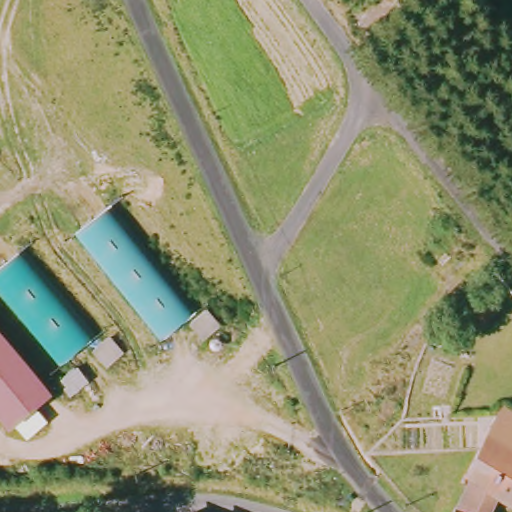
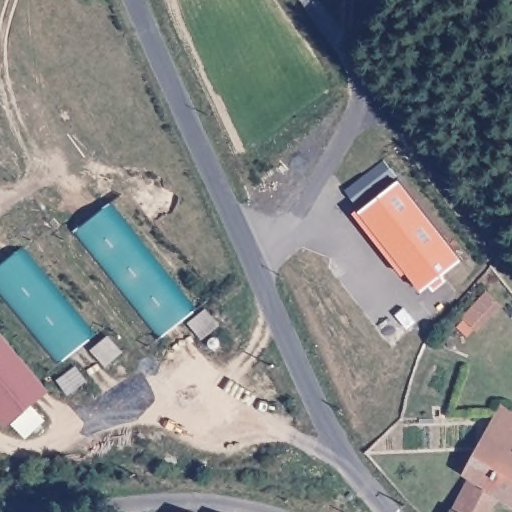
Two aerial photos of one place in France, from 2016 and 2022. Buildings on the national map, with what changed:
new [(400,181),(462,260),(442,276),(446,282),(434,291),(430,285),(423,291),(409,273),(404,276),(354,213),(359,210),(361,212),(400,181)]
unchanged [(115,203),(200,312),(165,341),(78,233),(115,203)]
unchanged [(95,344),(65,371),(0,296),(0,268),(22,251),(95,344)]
unchanged [(211,310),(223,327),(208,340),(196,323),(211,310)]
unchanged [(12,434),(0,420),(0,334),(55,396),(12,434)]
unchanged [(115,337),(128,355),(110,368),(98,351),(115,337)]
unchanged [(507,446),(500,457),(481,448),(497,423),(507,407),(512,411),(512,450),(507,446)]
unchanged [(496,492),(472,477),(467,473),(481,448),(500,457),(507,446),(512,450),(512,501),(496,492)]
unchanged [(487,512),(459,512),(453,509),(472,477),(496,492),(487,512)]
unchanged [(453,509),(459,512),(452,512),(453,509)]

